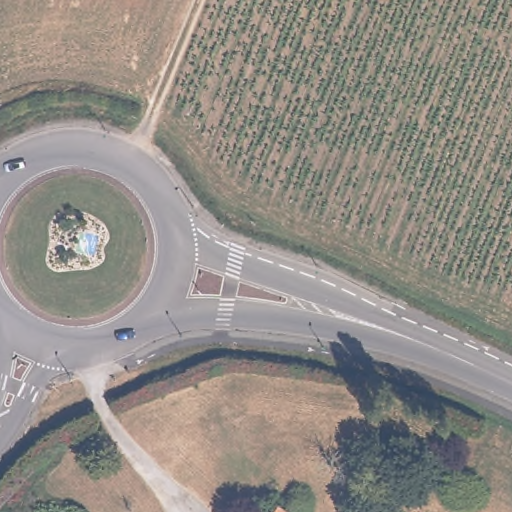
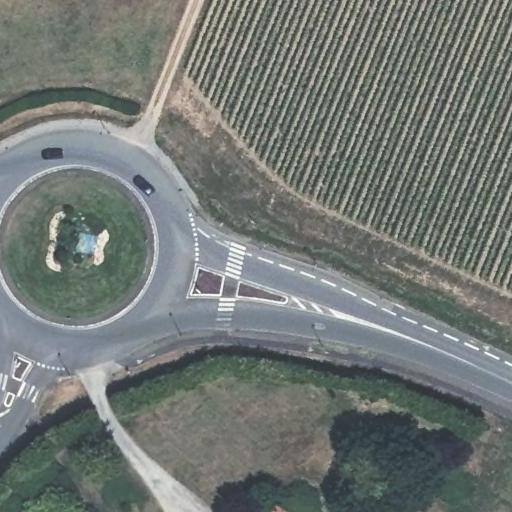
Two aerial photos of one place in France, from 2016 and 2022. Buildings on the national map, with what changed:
unchanged [(285,498),(305,512),(269,512),(281,495),(285,498)]

